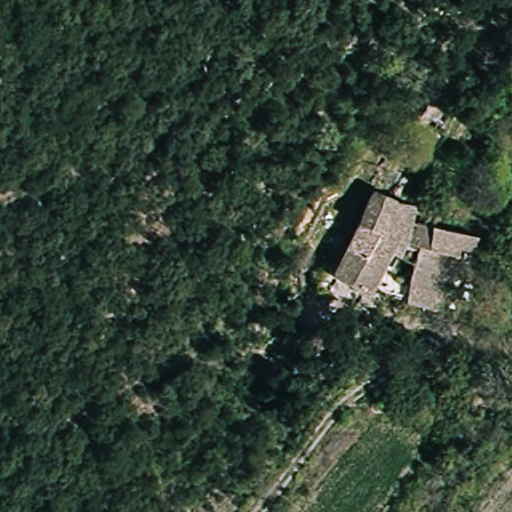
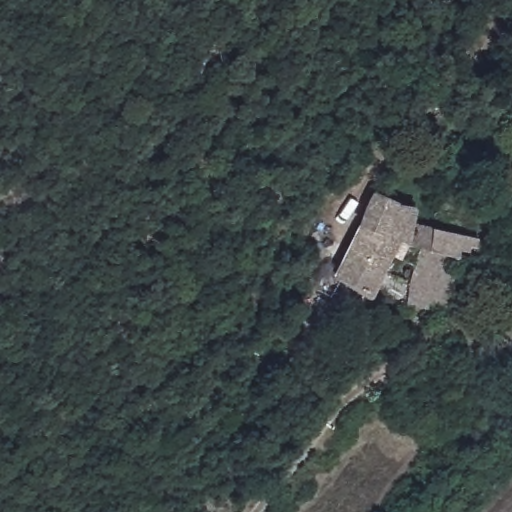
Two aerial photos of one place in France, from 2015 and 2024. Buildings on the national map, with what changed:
unchanged [(465,259),(440,317),(425,312),(421,325),(407,319),(422,283),(391,260),(368,300),(332,278),(341,257),(376,195),(420,217),(418,223),(440,232),(505,250),(496,272),(465,259)]

